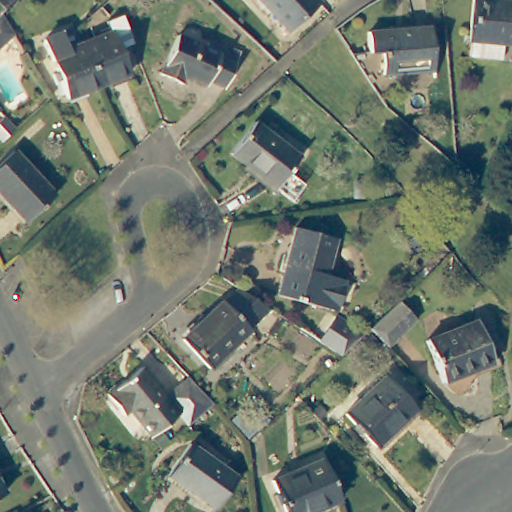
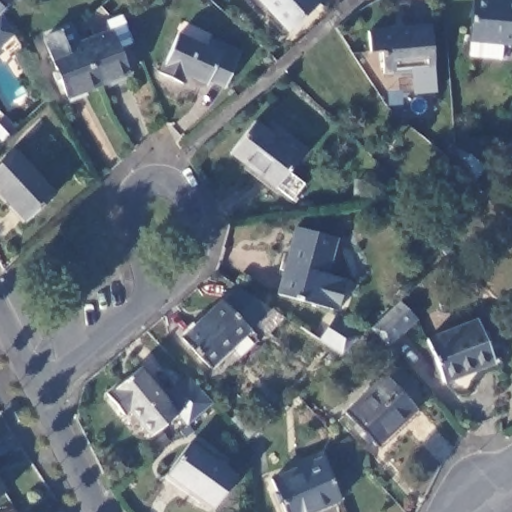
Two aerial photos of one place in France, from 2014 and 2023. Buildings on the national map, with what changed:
unchanged [(271,13),(259,0),(315,0),(317,3),(287,30),(286,29),(281,33),(266,18),(271,13)]
unchanged [(471,0),(506,0),(512,1),(512,44),(468,40),(471,0)]
unchanged [(9,25),(13,32),(0,43),(0,10),(9,25)]
unchanged [(131,44),(117,49),(127,74),(96,86),(80,43),(110,31),(109,21),(120,17),(124,25),(131,44)]
unchanged [(381,73),(379,51),(368,52),(365,31),(428,25),(432,69),(381,73)]
unchanged [(66,96),(45,38),(60,31),(67,48),(80,43),(96,86),(66,96)]
unchanged [(209,80),(207,85),(186,74),(180,84),(160,75),(177,36),(206,49),(211,40),(240,54),(225,88),(209,80)]
unchanged [(4,126),(0,122),(0,105),(11,119),(4,126)]
unchanged [(293,196),(276,185),(274,188),(229,152),(253,121),(299,156),(286,173),(300,185),(293,196)]
unchanged [(0,196),(0,165),(13,153),(53,196),(25,223),(0,196)]
unchanged [(271,294),(290,228),(330,239),(318,275),(338,280),(330,312),(271,294)]
unchanged [(216,302),(217,303),(232,289),(254,303),(265,311),(244,331),(245,333),(207,370),(177,339),(216,302)]
unchanged [(399,298),(416,317),(389,344),(366,324),(399,298)]
unchanged [(425,336),(477,316),(492,358),(475,365),(475,368),(465,385),(461,389),(456,389),(443,381),(425,336)]
unchanged [(334,356),(313,342),(328,317),(356,336),(334,356)]
unchanged [(184,426),(173,414),(146,436),(123,410),(116,416),(101,397),(135,369),(160,396),(182,378),(207,407),(184,426)]
unchanged [(343,414),(384,377),(414,410),(373,447),(343,414)]
unchanged [(166,476),(190,444),(235,477),(212,509),(166,476)]
unchanged [(310,512),(283,512),(270,481),(318,459),(336,502),(310,512)]
unchanged [(7,490),(0,494),(0,476),(7,490)]

